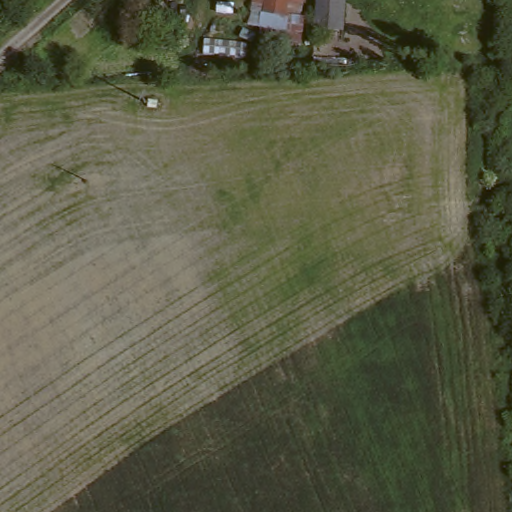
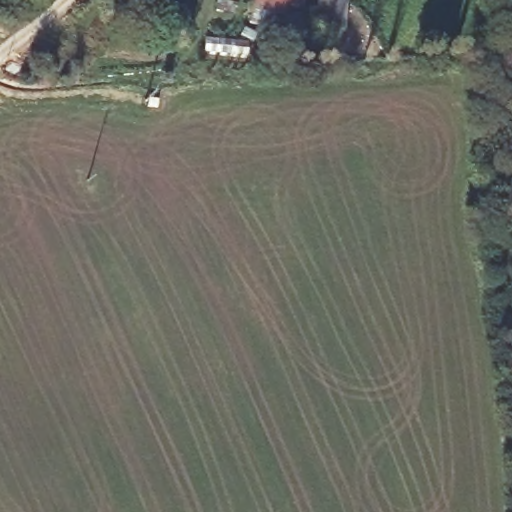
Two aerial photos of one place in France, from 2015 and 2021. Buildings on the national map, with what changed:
unchanged [(258,16),(262,0),(297,0),(288,27),(258,16)]
unchanged [(320,31),(321,0),(347,0),(346,32),(320,31)]

